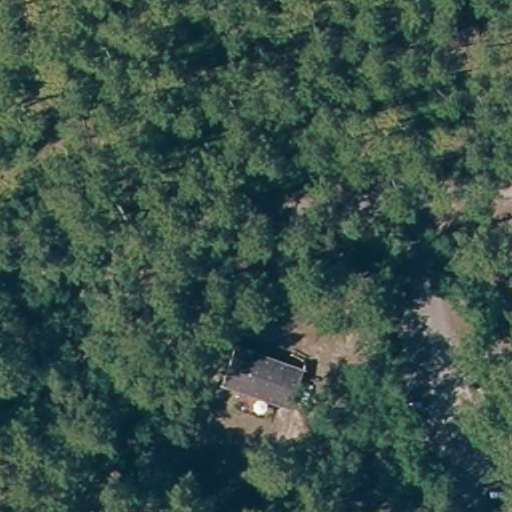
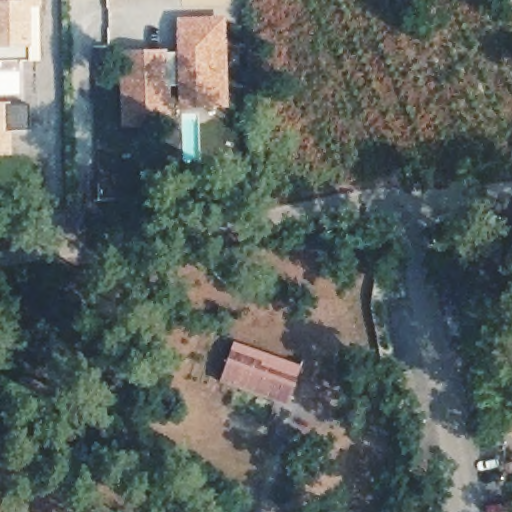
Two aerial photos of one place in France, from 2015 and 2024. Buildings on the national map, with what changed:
new [(37,0),(37,14),(26,14),(27,54),(0,55),(0,0),(37,0)]
new [(125,66),(162,66),(162,64),(181,64),(180,34),(217,33),(219,111),(217,111),(217,108),(183,109),(183,112),(181,112),(181,96),(162,96),(162,131),(160,131),(160,128),(126,129),(126,132),(124,132),(123,64),(125,64),(125,66)]
new [(29,140),(6,140),(6,161),(0,162),(0,114),(4,114),(28,114),(29,140)]
unchanged [(276,400),(216,379),(225,348),(287,370),(276,400)]

